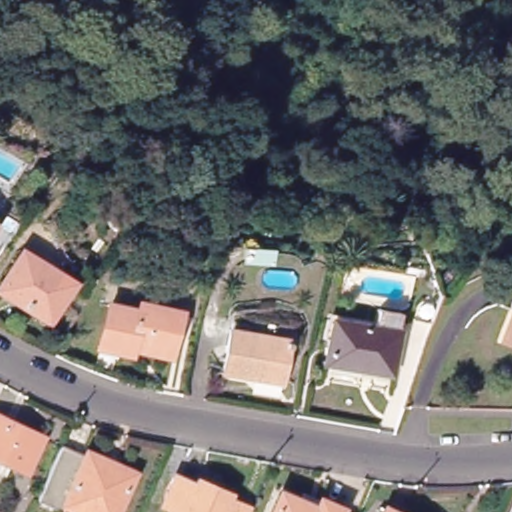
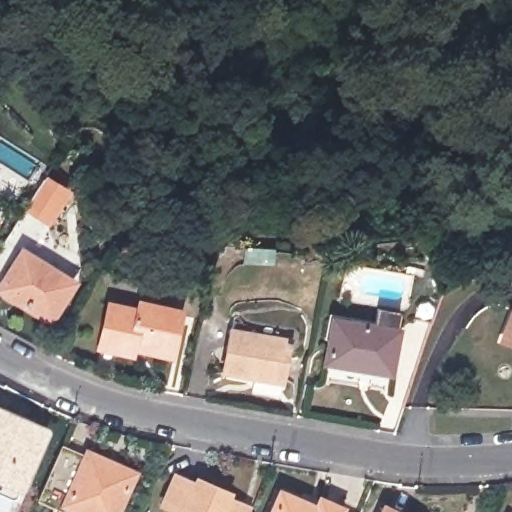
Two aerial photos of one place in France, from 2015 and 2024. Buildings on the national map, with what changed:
new [(45,174),(72,190),(50,227),(23,211),(45,174)]
unchanged [(126,255),(119,251),(127,238),(134,242),(126,255)]
unchanged [(243,262),(243,247),(274,248),(274,263),(243,262)]
unchanged [(22,252),(74,283),(50,322),(24,306),(0,291),(0,289),(3,284),(22,252)]
unchanged [(132,350),(131,353),(101,347),(111,306),(139,312),(141,306),(179,314),(171,350),(170,358),(132,350)]
unchanged [(373,332),(377,314),(399,318),(396,337),(397,337),(389,378),(326,367),(333,326),(373,332)]
unchanged [(504,339),(512,318),(512,342),(504,339)]
unchanged [(231,331),(290,342),(283,384),(224,373),(231,331)]
unchanged [(0,415),(47,437),(30,473),(14,466),(9,477),(0,472),(0,415)]
unchanged [(61,448),(85,458),(87,454),(133,474),(117,512),(78,512),(65,507),(63,512),(37,501),(61,448)]
unchanged [(162,506),(175,476),(194,485),(196,480),(228,493),(226,498),(250,508),(249,512),(177,512),(162,506)]
unchanged [(275,487),(311,503),(315,494),(354,511),(353,512),(265,512),(275,487)]
unchanged [(375,508),(383,512),(373,512),(375,508)]

